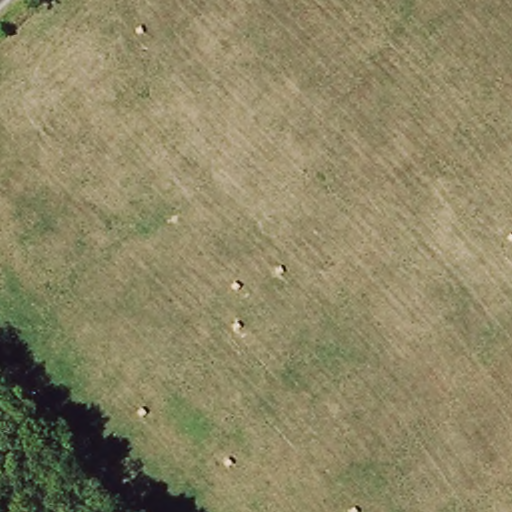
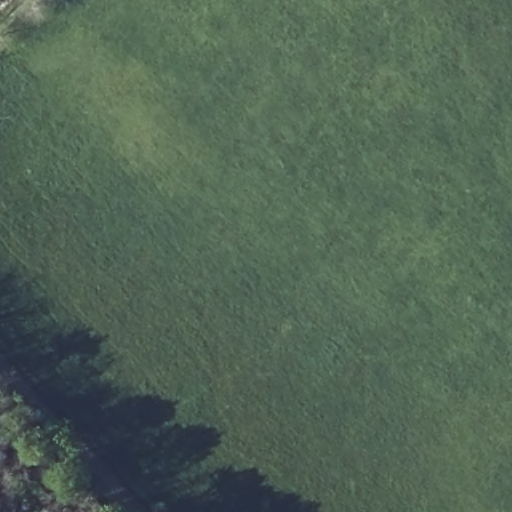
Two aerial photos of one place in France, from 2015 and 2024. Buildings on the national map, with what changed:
[]

